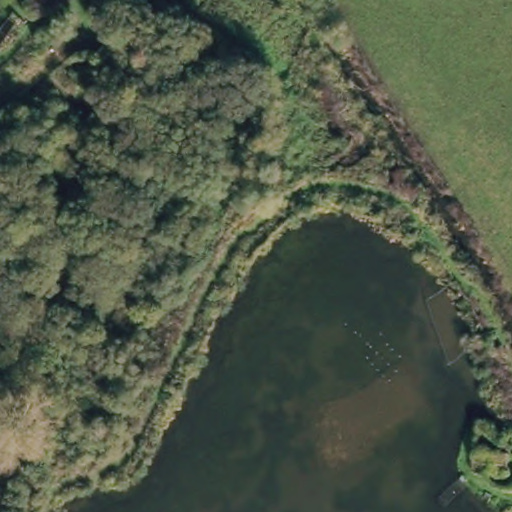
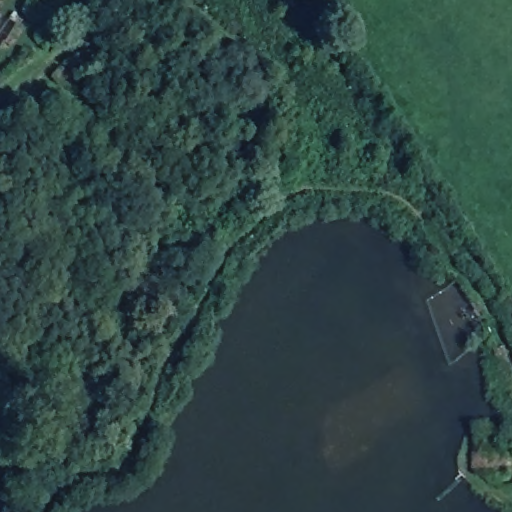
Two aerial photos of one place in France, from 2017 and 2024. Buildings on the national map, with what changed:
unchanged [(115,78),(93,56),(111,40),(135,65),(115,78)]

